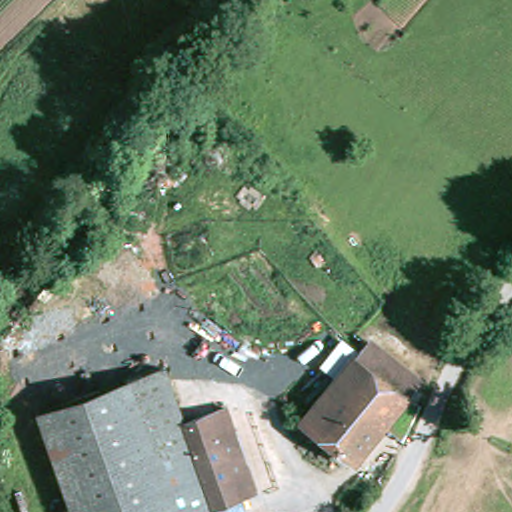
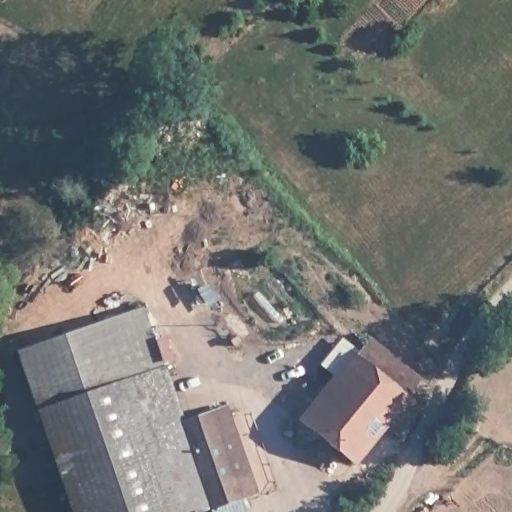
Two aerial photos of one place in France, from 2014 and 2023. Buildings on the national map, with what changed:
new [(42,408),(26,347),(155,308),(171,372),(42,408)]
unchanged [(398,440),(377,425),(352,457),(303,422),(357,353),(369,340),(416,376),(404,391),(414,398),(398,440)]
unchanged [(42,408),(134,382),(171,372),(187,428),(211,512),(73,512),(42,408)]
unchanged [(231,417),(257,502),(241,507),(215,421),(231,417)]
unchanged [(242,512),(211,512),(187,428),(215,421),(241,507),(242,512)]

